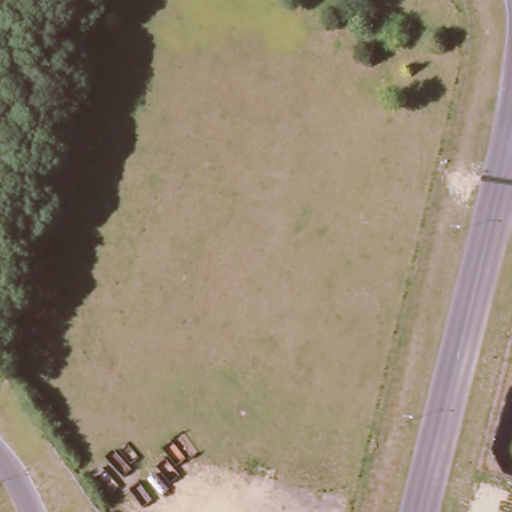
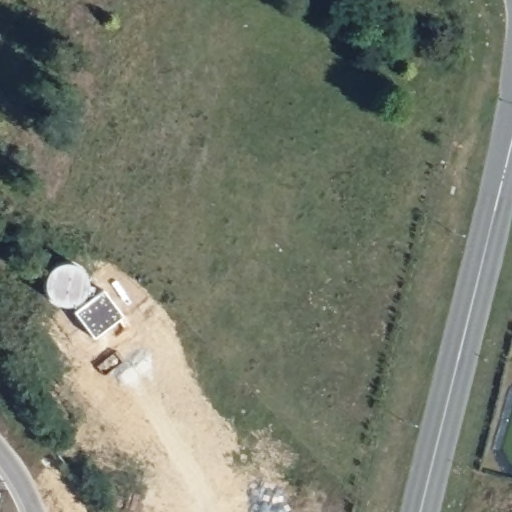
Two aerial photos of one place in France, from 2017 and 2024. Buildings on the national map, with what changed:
new [(121,316),(92,337),(72,311),(100,290),(121,316)]

